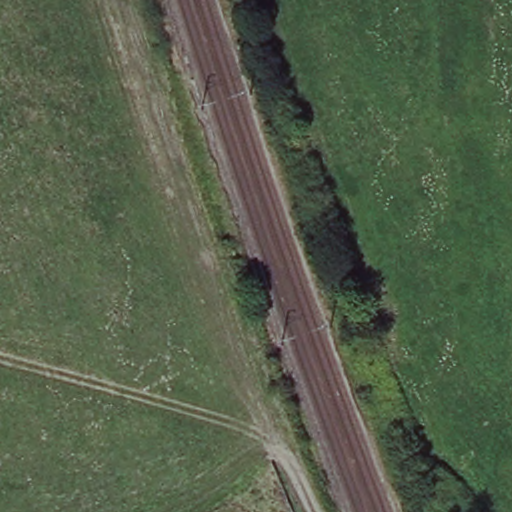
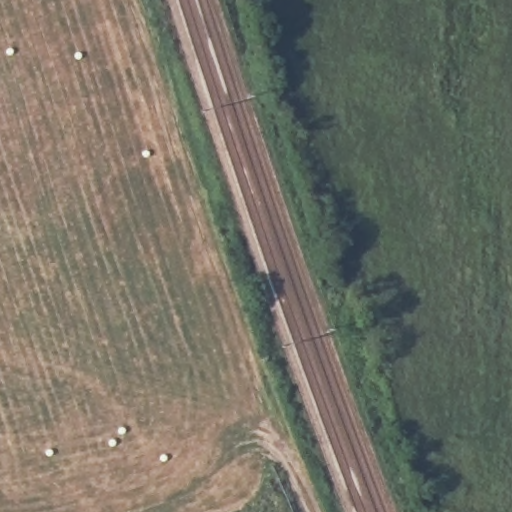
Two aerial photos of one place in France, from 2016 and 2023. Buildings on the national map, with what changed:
[]

